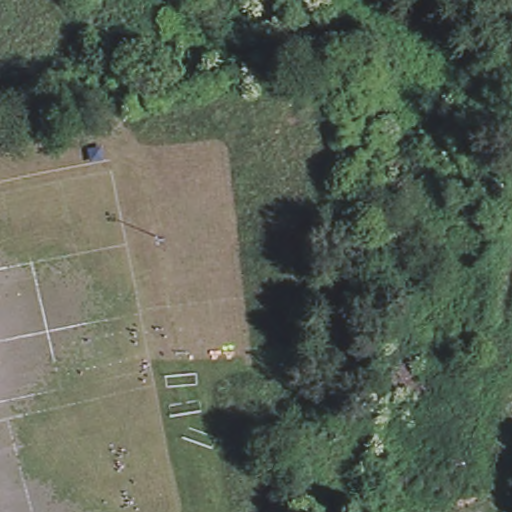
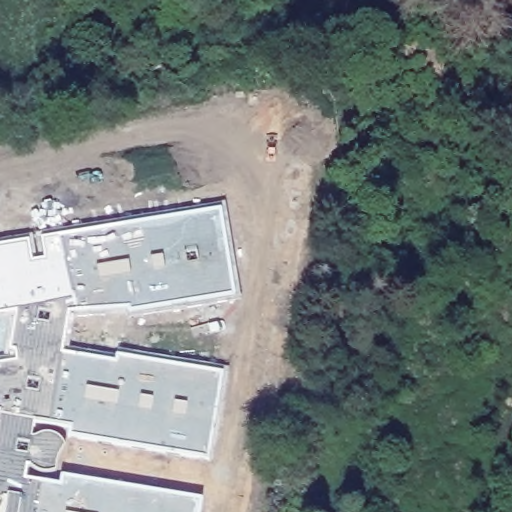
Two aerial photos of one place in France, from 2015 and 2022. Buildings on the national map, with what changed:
new [(28,239),(31,258),(45,256),(43,236),(222,208),(235,293),(131,309),(129,305),(69,309),(63,350),(115,359),(117,354),(222,371),(206,460),(71,437),(71,429),(34,422),(32,435),(41,433),(53,433),(63,439),(63,447),(62,456),(57,464),(49,468),(43,468),(35,468),(26,462),(23,481),(60,484),(62,478),(200,497),(198,512),(0,512),(0,243),(28,239)]

